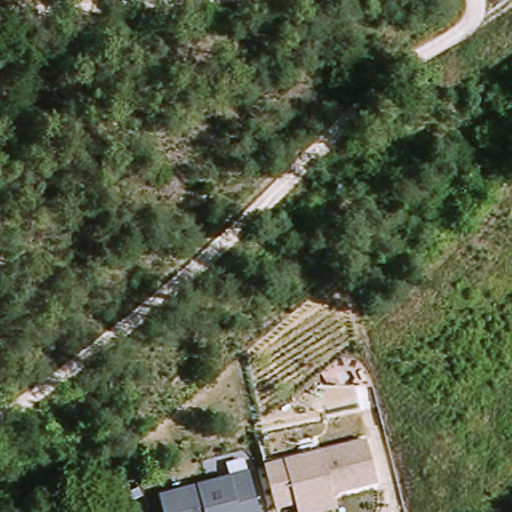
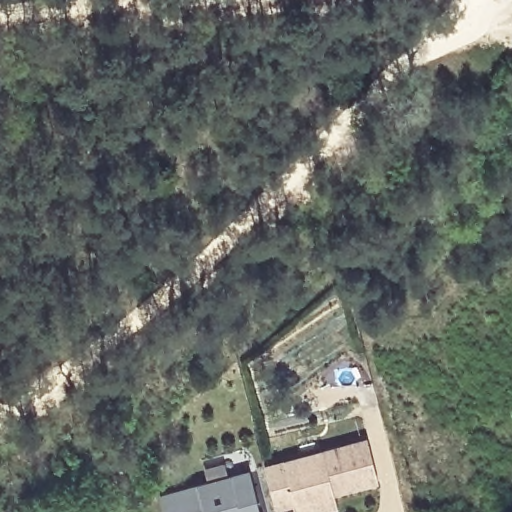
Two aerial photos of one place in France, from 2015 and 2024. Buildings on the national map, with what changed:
unchanged [(379,482),(337,494),(341,510),(333,512),(300,512),(297,505),(276,509),(266,464),(369,438),(379,482)]
unchanged [(262,512),(164,512),(160,495),(252,472),(262,512)]

